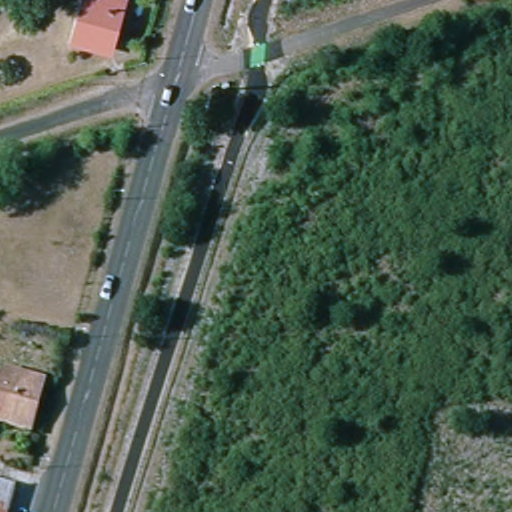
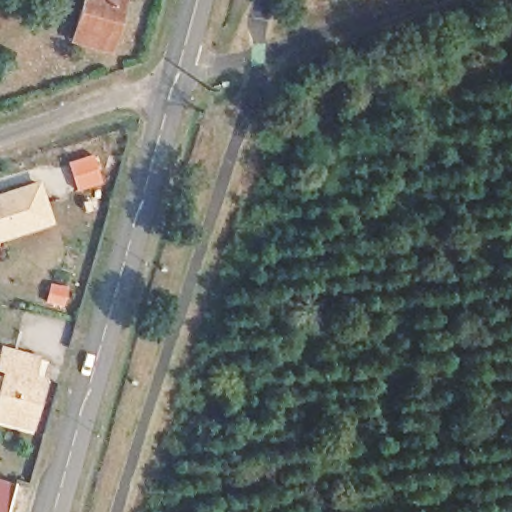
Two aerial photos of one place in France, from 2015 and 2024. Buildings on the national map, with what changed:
unchanged [(74,41),(85,0),(126,0),(112,51),(74,41)]
new [(39,184),(51,222),(0,239),(0,197),(39,184)]
unchanged [(0,420),(0,379),(4,381),(7,370),(0,368),(0,352),(2,353),(2,350),(43,359),(40,379),(46,381),(42,395),(32,429),(0,420)]
unchanged [(15,512),(0,512),(0,486),(21,492),(15,512)]

